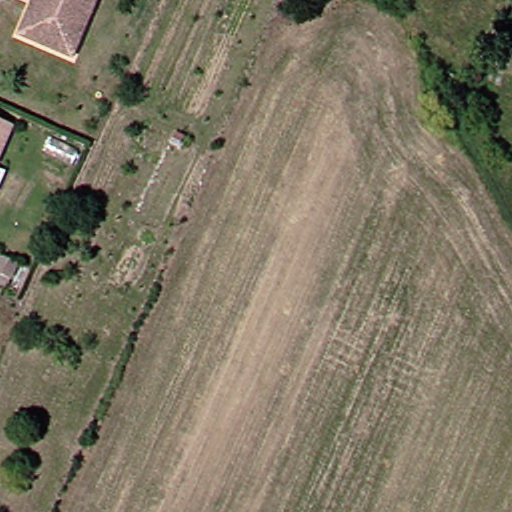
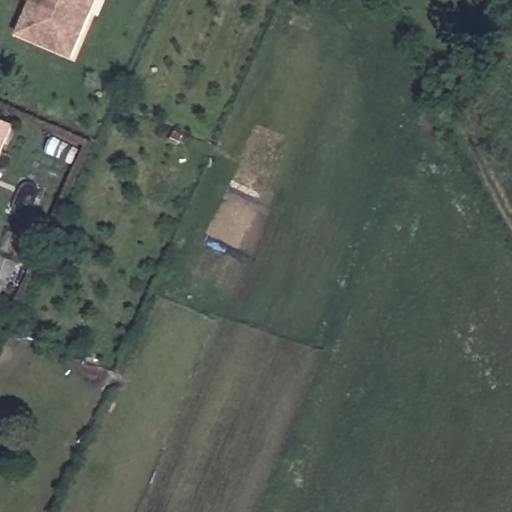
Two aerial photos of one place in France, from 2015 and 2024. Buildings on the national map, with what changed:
unchanged [(73,58),(19,35),(34,0),(98,0),(92,13),(73,58)]
unchanged [(465,83),(458,94),(449,89),(457,77),(465,83)]
unchanged [(0,155),(0,121),(12,126),(0,155)]
unchanged [(12,277),(0,272),(0,258),(1,255),(18,263),(12,277)]

